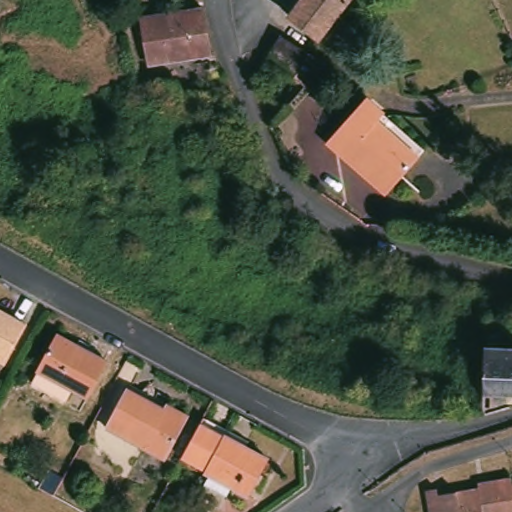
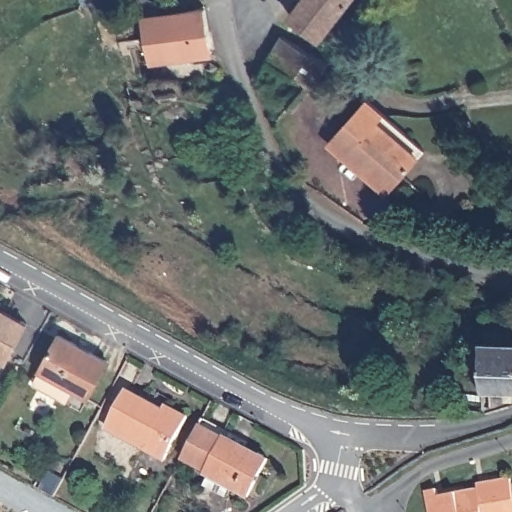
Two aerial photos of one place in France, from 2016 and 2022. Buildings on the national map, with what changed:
unchanged [(311,41),(287,22),(283,19),(297,0),(345,0),(343,2),(332,17),(352,33),(332,56),(313,42),(311,41)]
unchanged [(209,57),(148,66),(141,19),(204,12),(209,57)]
unchanged [(313,86),(306,81),(289,104),(288,106),(265,95),(258,80),(283,32),(311,49),(331,61),(313,86)]
unchanged [(420,151),(381,194),(324,144),(363,101),(420,151)]
unchanged [(23,327),(0,367),(0,314),(23,327)]
unchanged [(28,384),(34,373),(54,336),(103,362),(82,401),(76,412),(28,384)]
unchanged [(512,355),(512,394),(479,392),(480,378),(481,355),(512,355)]
unchanged [(165,412),(168,407),(187,418),(162,463),(106,432),(128,393),(165,412)]
unchanged [(267,461),(246,499),(225,487),(219,496),(202,487),(207,477),(180,461),(200,424),(267,461)]
unchanged [(422,493),(432,492),(433,497),(474,490),(473,486),(507,481),(508,486),(512,485),(512,512),(425,512),(425,511),(422,493)]

